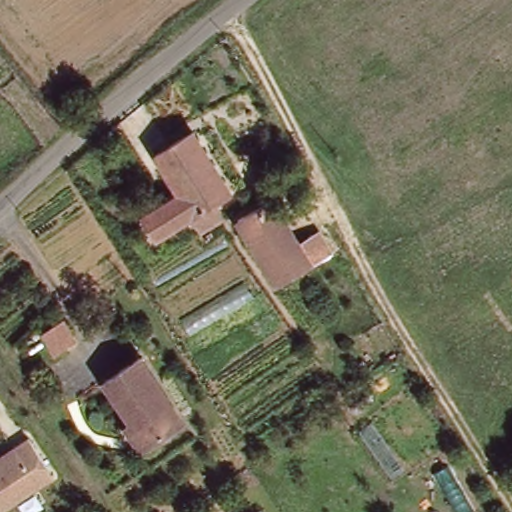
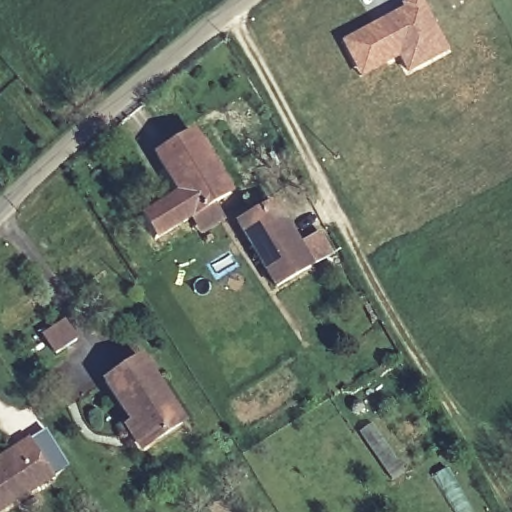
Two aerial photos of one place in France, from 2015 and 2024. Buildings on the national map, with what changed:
new [(401,8),(399,4),(407,0),(421,0),(450,51),(407,75),(397,60),(360,79),(340,41),(401,8)]
unchanged [(179,193),(157,152),(195,132),(227,194),(152,237),(140,215),(179,193)]
unchanged [(298,241),(327,231),(336,258),(274,287),(236,221),(273,198),(298,241)]
unchanged [(220,204),(226,220),(201,234),(192,220),(220,204)]
unchanged [(75,340),(57,351),(45,332),(62,321),(75,340)]
unchanged [(100,386),(141,359),(184,425),(142,451),(100,386)]
unchanged [(0,510),(0,457),(19,445),(31,437),(54,476),(0,510)]

